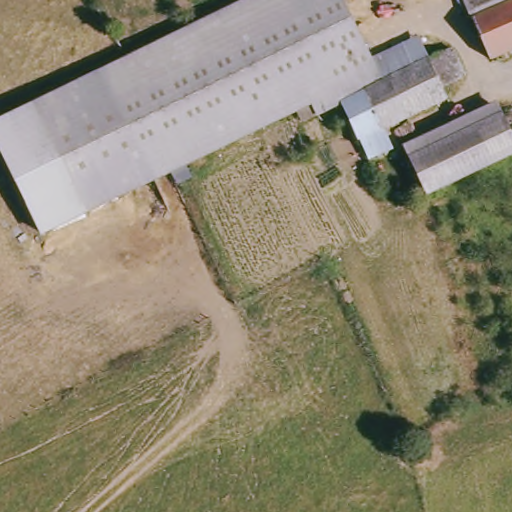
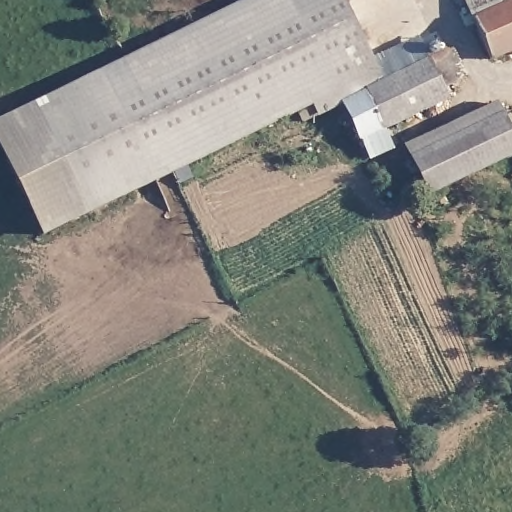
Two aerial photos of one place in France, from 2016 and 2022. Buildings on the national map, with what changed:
unchanged [(361,159),(352,141),(335,104),(312,115),(306,103),(244,132),(187,24),(217,10),(235,0),(359,0),(395,77),(452,50),(466,77),(442,88),(446,97),(375,131),(383,149),(361,159)]
unchanged [(468,15),(461,0),(504,0),(468,15)]
unchanged [(485,55),(468,15),(504,0),(512,0),(512,43),(485,55)]
unchanged [(244,132),(170,169),(114,59),(152,40),(187,24),(244,132)]
unchanged [(511,65),(502,62),(500,55),(504,50),(512,50),(512,64),(511,65)]
unchanged [(45,94),(114,59),(170,169),(101,204),(45,94)]
unchanged [(54,227),(0,120),(0,116),(45,94),(101,204),(54,227)]
unchanged [(430,192),(411,156),(502,111),(512,129),(512,150),(430,192)]

